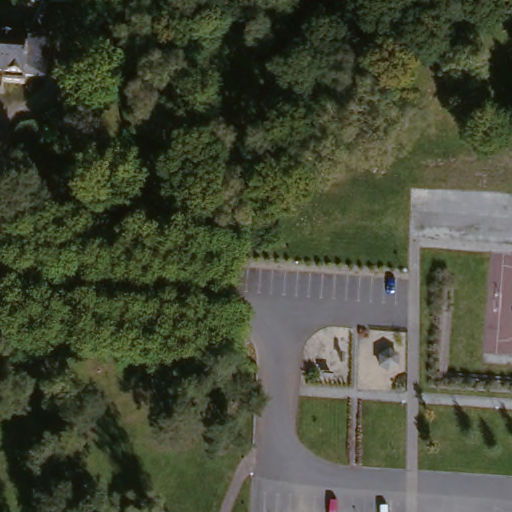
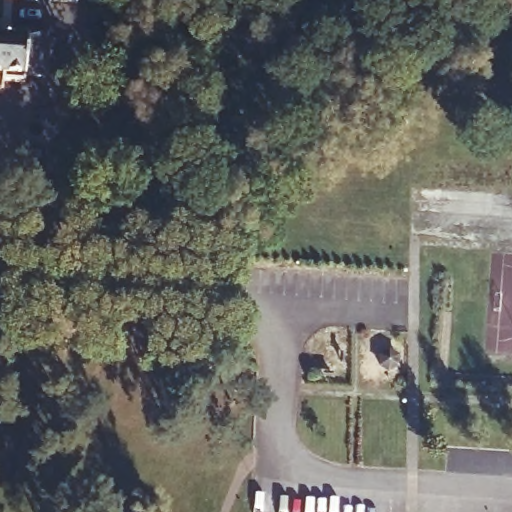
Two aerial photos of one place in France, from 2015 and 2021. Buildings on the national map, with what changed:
unchanged [(74,5),(17,5),(18,0),(75,0),(74,5)]
unchanged [(19,75),(17,84),(0,82),(0,38),(12,38),(45,39),(42,75),(19,75)]

